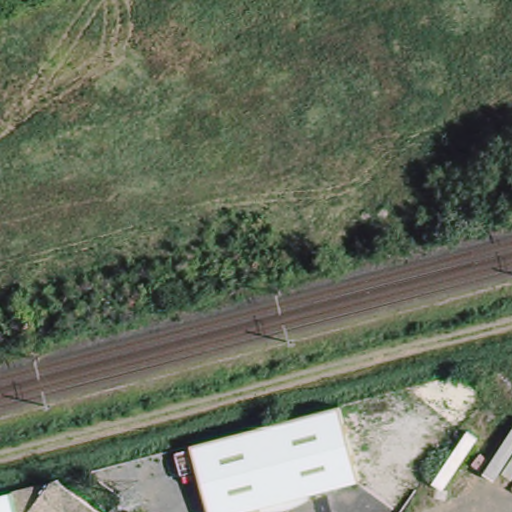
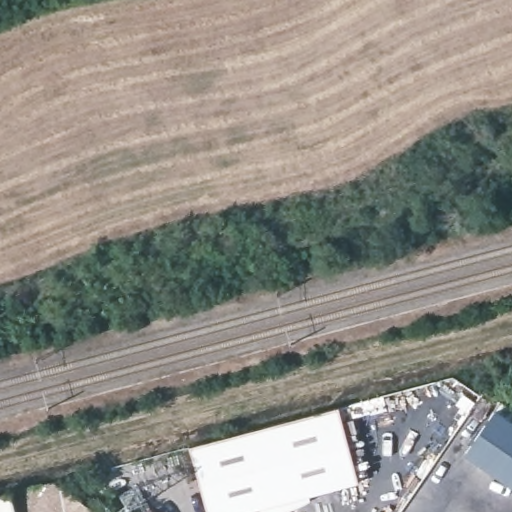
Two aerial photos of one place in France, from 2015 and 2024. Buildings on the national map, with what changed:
unchanged [(203,512),(185,447),(335,407),(355,482),(305,496),(306,500),(305,501),(303,502),(302,502),(302,503),(301,503),(300,504),(300,505),(299,505),(298,506),(297,506),(296,507),(295,507),(294,507),(293,507),(293,508),(292,508),(290,509),(290,510),(288,510),(287,511),(286,511),(285,511),(284,511),(283,512),(282,512),(280,512),(255,512),(255,509),(243,512),(203,512)]
new [(512,424),(512,483),(468,456),(495,413),(512,424)]
unchanged [(50,481),(94,512),(0,512),(0,494),(3,493),(50,481)]

